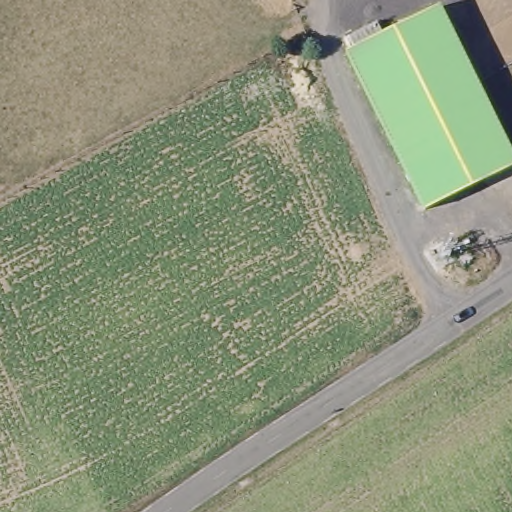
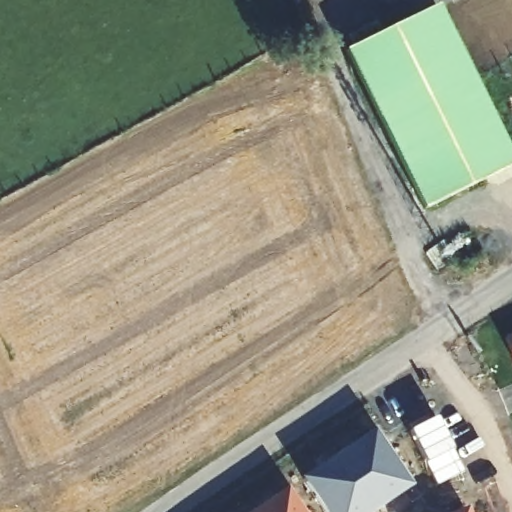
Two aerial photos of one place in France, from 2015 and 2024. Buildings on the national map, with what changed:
unchanged [(446,22),(467,64),(512,157),(512,165),(423,207),(347,48),(437,4),(446,22)]
new [(504,328),(512,325),(512,352),(504,328)]
new [(360,512),(328,512),(309,482),(294,492),(287,478),(370,420),(408,478),(360,512)]
new [(301,512),(239,512),(283,481),(301,512)]
new [(470,512),(435,512),(464,498),(470,512)]

